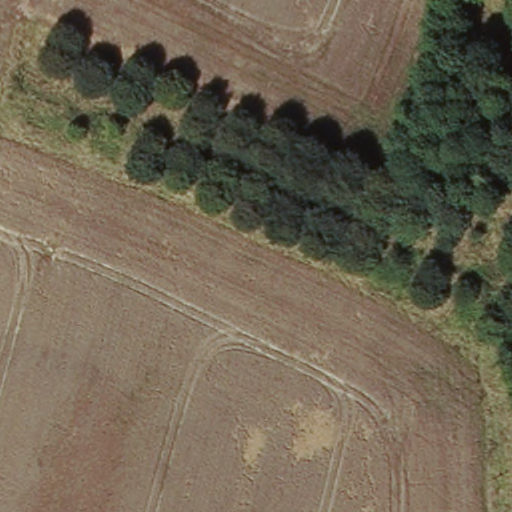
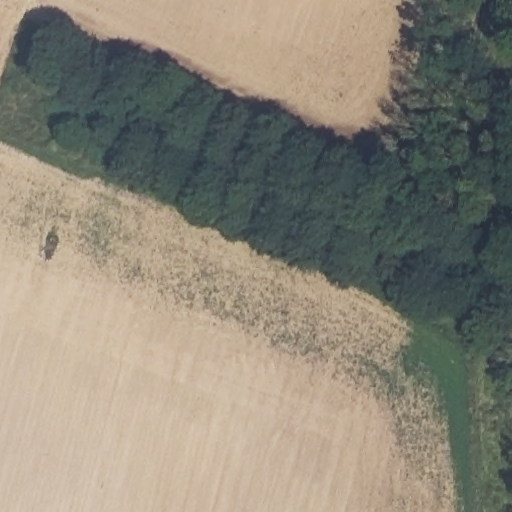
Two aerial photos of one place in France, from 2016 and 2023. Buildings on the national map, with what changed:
[]

